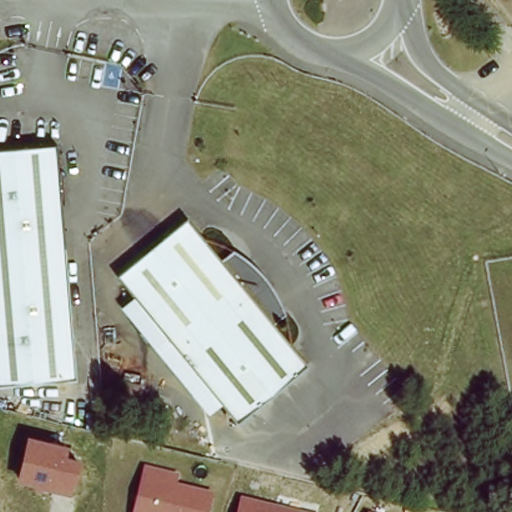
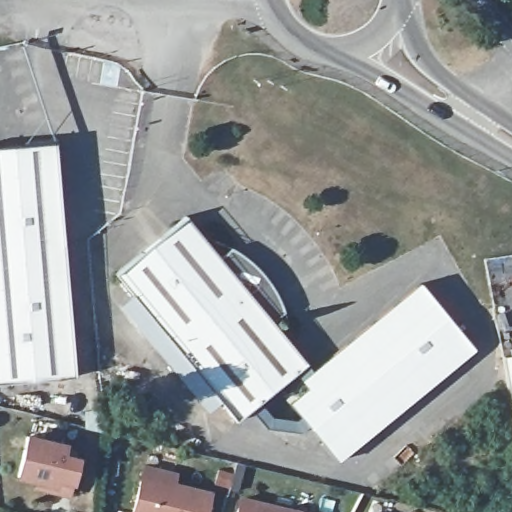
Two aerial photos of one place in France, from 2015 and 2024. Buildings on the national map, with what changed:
unchanged [(51,143),(59,236),(71,378),(0,385),(0,147),(51,143)]
unchanged [(113,275),(185,217),(218,260),(231,249),(234,253),(241,256),(253,265),(264,277),(269,283),(278,301),(282,315),(270,324),(304,366),(233,424),(167,341),(113,275)]
new [(419,287),(473,351),(338,462),(291,405),(310,389),(303,381),(419,287)]
new [(512,358),(512,395),(505,360),(512,358)]
unchanged [(67,444),(64,455),(80,458),(70,498),(35,492),(37,485),(17,480),(27,435),(67,444)]
unchanged [(208,512),(133,512),(144,466),(178,475),(176,485),(213,492),(208,512)]
unchanged [(302,512),(237,512),(241,497),(302,512)]

